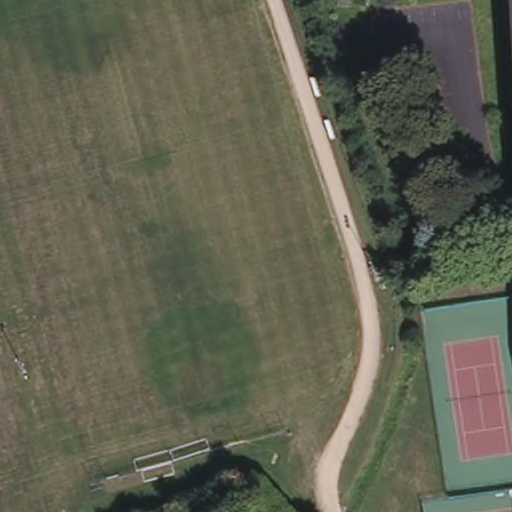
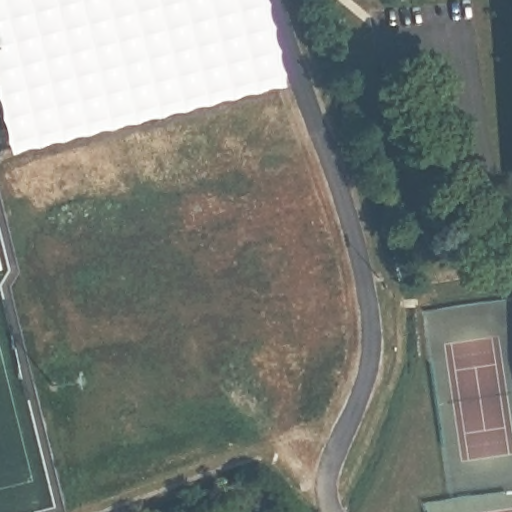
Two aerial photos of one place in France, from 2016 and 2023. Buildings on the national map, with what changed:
new [(0,178),(0,0),(252,0),(278,96),(0,178)]

